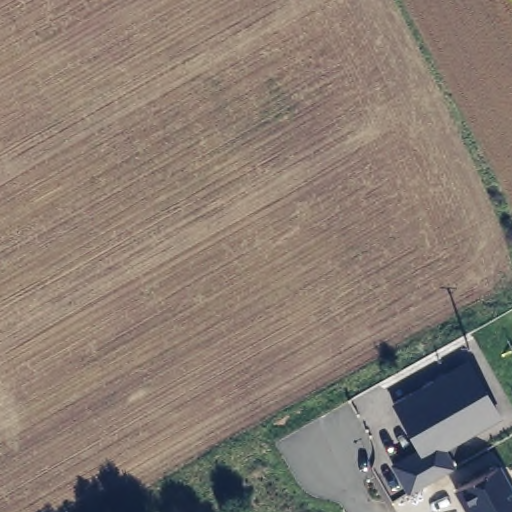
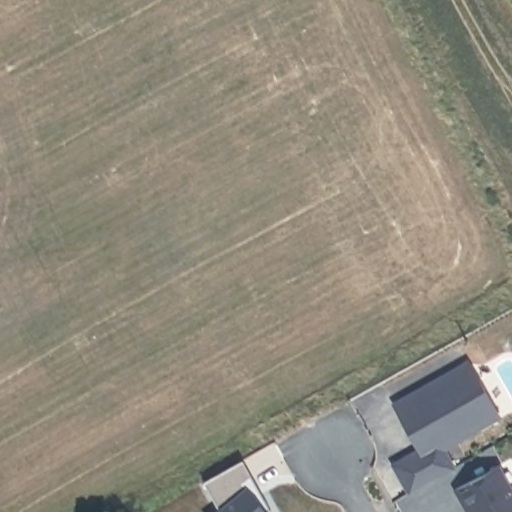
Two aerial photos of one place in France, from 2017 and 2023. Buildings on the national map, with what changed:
unchanged [(446,451),(455,467),(406,495),(387,463),(415,448),(389,400),(469,357),(502,419),(446,451)]
new [(260,495),(270,510),(267,512),(219,512),(220,511),(199,484),(227,468),(237,463),(260,495)]
unchanged [(500,464),(512,485),(512,512),(467,512),(454,489),(500,464)]

